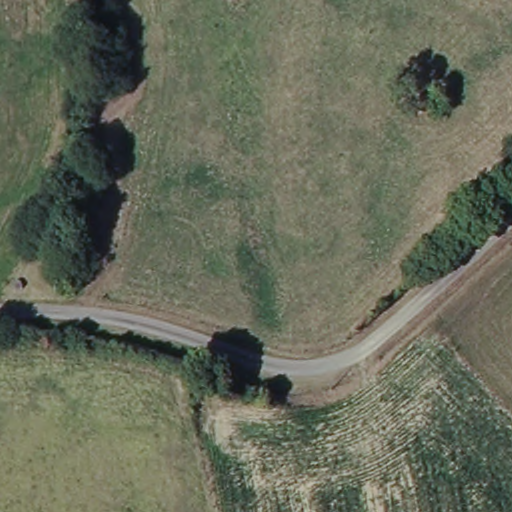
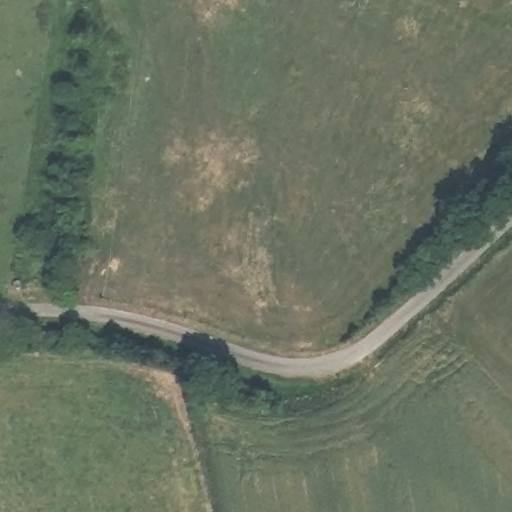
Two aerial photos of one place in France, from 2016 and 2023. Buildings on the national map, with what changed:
[]

